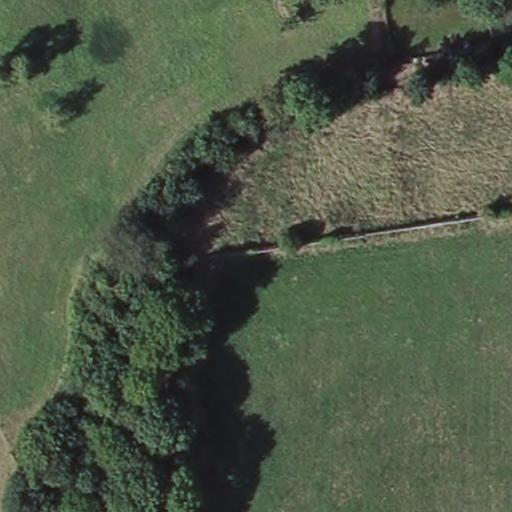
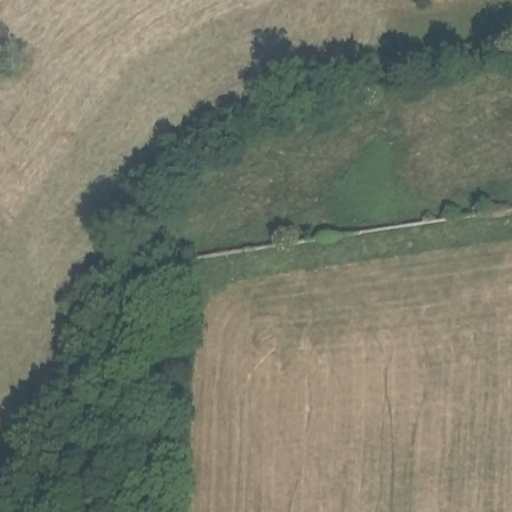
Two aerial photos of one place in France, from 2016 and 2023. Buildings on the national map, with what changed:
unchanged [(185,234),(186,246),(189,261),(171,261),(161,263),(159,236),(170,234),(185,234)]

